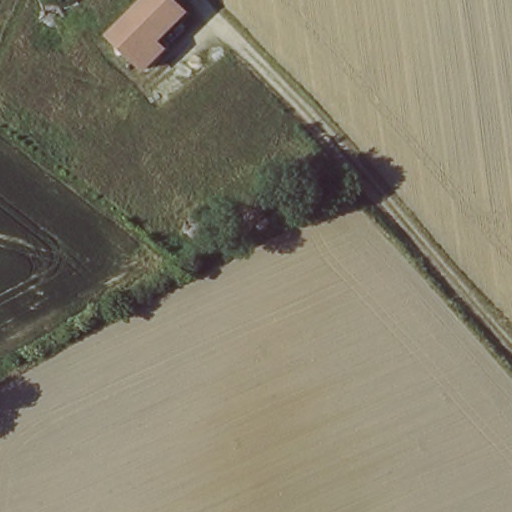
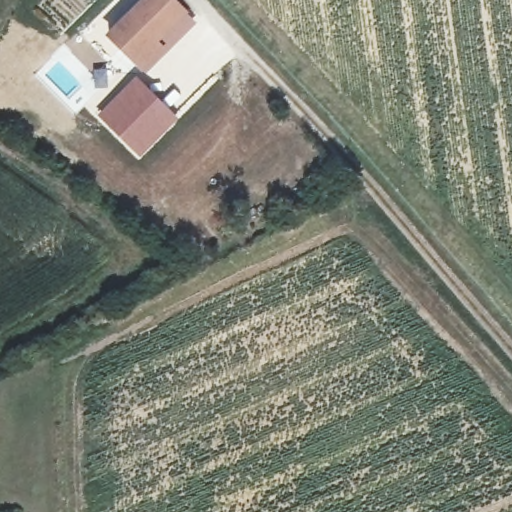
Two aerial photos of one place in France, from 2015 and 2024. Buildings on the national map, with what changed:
unchanged [(143,40),(153,51),(139,64),(111,31),(149,0),(179,0),(185,7),(143,40)]
new [(136,78),(178,118),(140,157),(98,115),(136,78)]

